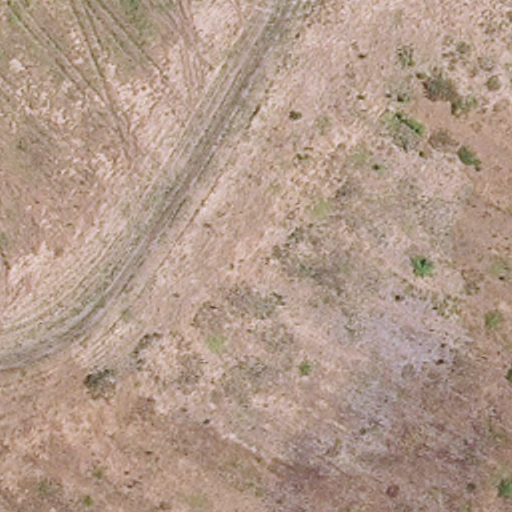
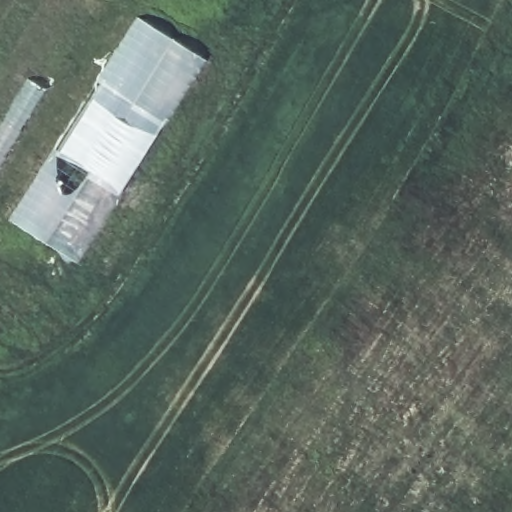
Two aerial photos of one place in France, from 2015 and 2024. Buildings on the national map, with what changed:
new [(81,106),(102,69),(137,16),(208,61),(185,97),(156,136),(118,198),(83,176),(84,174),(51,153),(81,106)]

